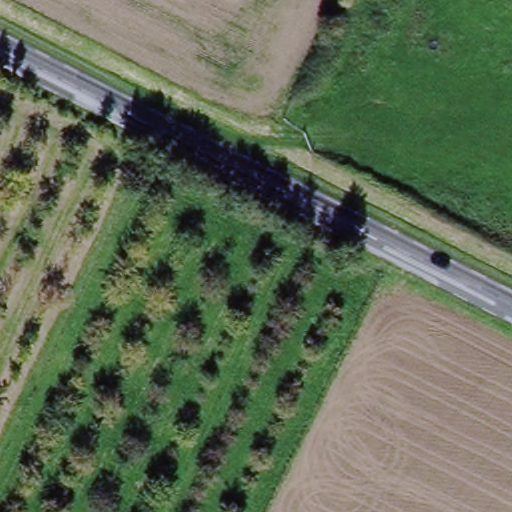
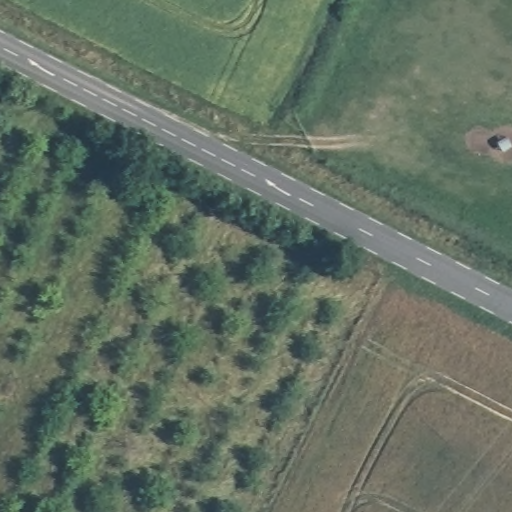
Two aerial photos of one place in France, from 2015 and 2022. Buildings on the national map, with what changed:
[]

